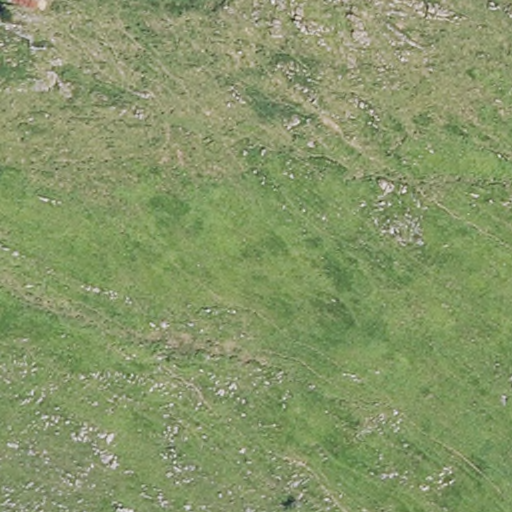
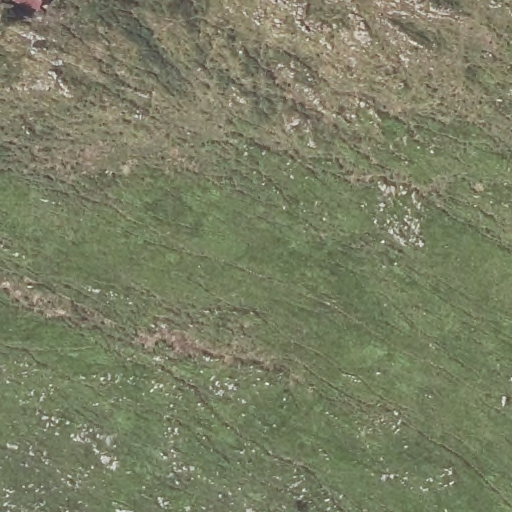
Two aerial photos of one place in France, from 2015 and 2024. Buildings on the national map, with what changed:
unchanged [(44,8),(16,2),(16,0),(46,0),(44,8)]

